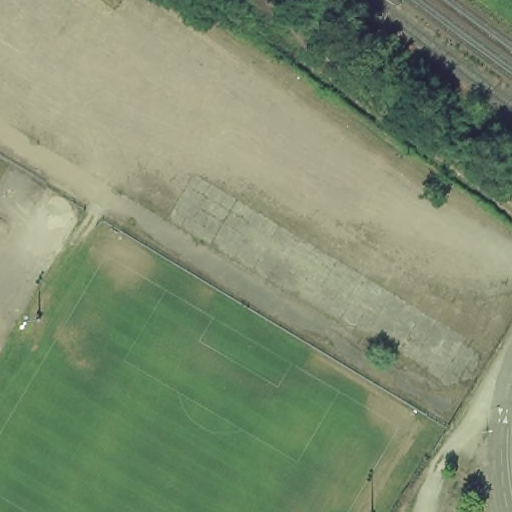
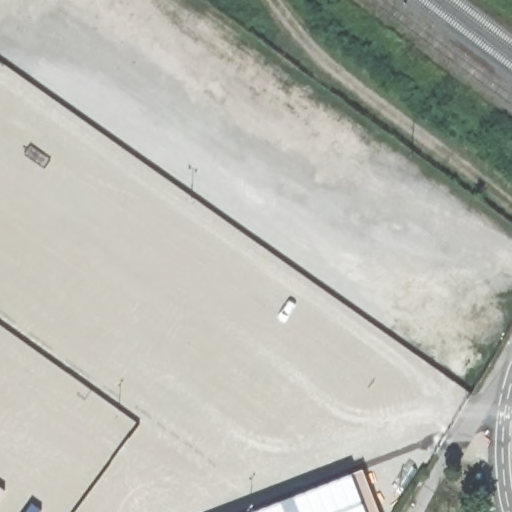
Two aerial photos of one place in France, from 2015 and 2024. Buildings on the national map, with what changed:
new [(382,512),(248,512),(366,468),(382,512)]

